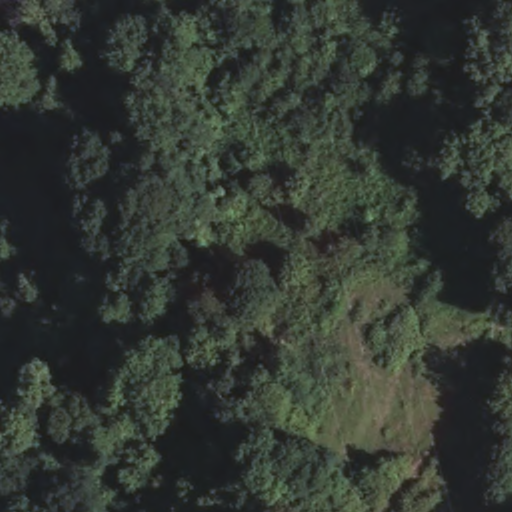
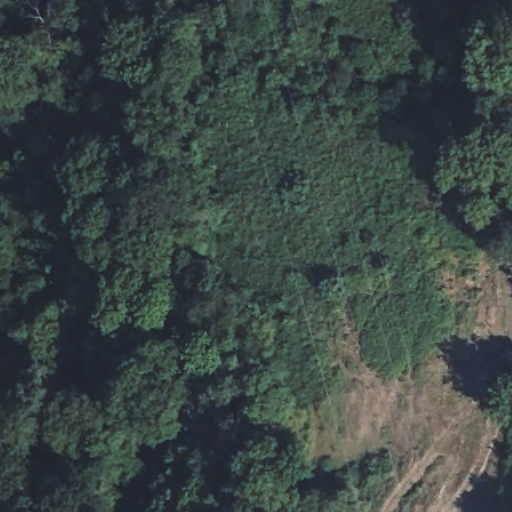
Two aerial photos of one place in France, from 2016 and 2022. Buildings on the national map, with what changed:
[]

